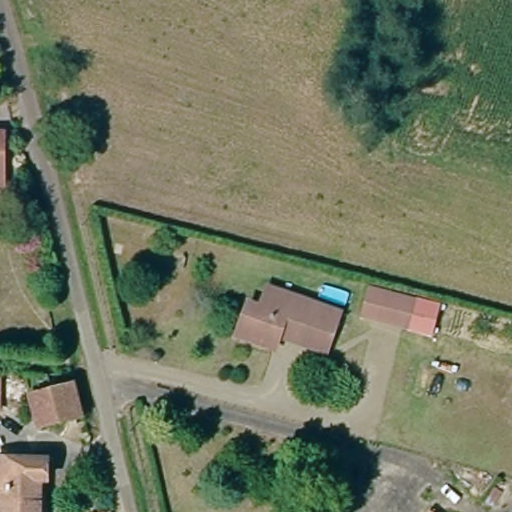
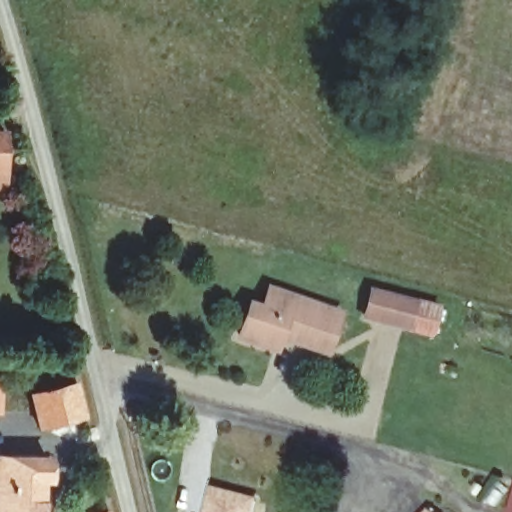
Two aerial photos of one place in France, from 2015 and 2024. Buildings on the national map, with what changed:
unchanged [(4,195),(0,195),(0,136),(6,136),(4,195)]
unchanged [(426,330),(414,326),(400,322),(400,321),(358,310),(365,286),(420,301),(433,305),(426,330)]
unchanged [(339,306),(328,348),(279,335),(276,346),(239,336),(244,315),(246,305),(264,310),(269,288),(339,306)]
unchanged [(2,407),(0,407),(0,373),(1,373),(2,407)]
unchanged [(83,416),(42,423),(33,381),(68,375),(76,376),(83,416)]
unchanged [(0,452),(46,455),(45,477),(40,477),(40,512),(0,512),(0,452)]
new [(213,485),(259,496),(254,512),(205,512),(213,485)]
new [(512,512),(511,512),(512,508),(512,512)]

